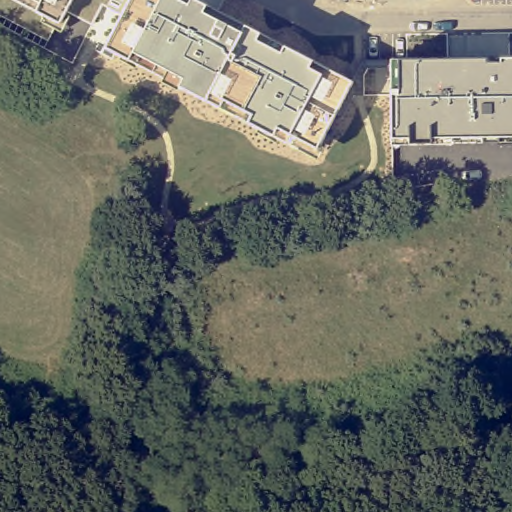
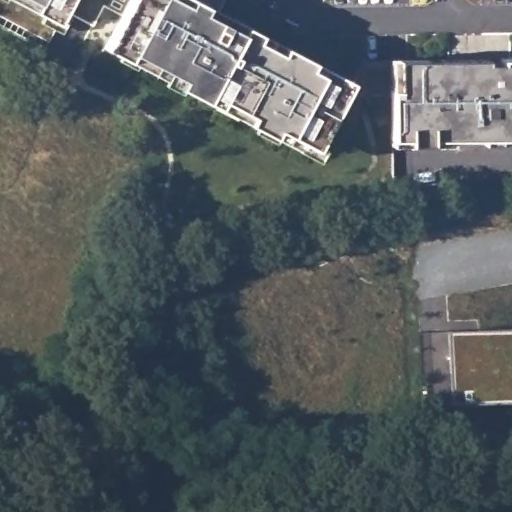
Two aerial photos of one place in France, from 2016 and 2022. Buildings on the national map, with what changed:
unchanged [(35,10),(44,14),(57,20),(62,13),(69,16),(61,31),(53,28),(47,40),(0,18),(0,0),(16,0),(35,10)]
unchanged [(64,9),(57,20),(44,14),(35,10),(16,0),(68,0),(64,9)]
unchanged [(121,14),(102,3),(92,24),(64,9),(68,0),(128,0),(121,14)]
unchanged [(121,14),(128,0),(196,0),(205,5),(258,32),(283,45),(312,59),(351,81),(315,147),(312,156),(272,133),(247,121),(218,106),(204,98),(179,86),(162,78),(127,58),(104,47),(121,14)]
unchanged [(390,58),(398,59),(512,57),(512,136),(392,137),(392,88),(390,58)]
new [(512,329),(512,402),(449,405),(447,332),(512,329)]

